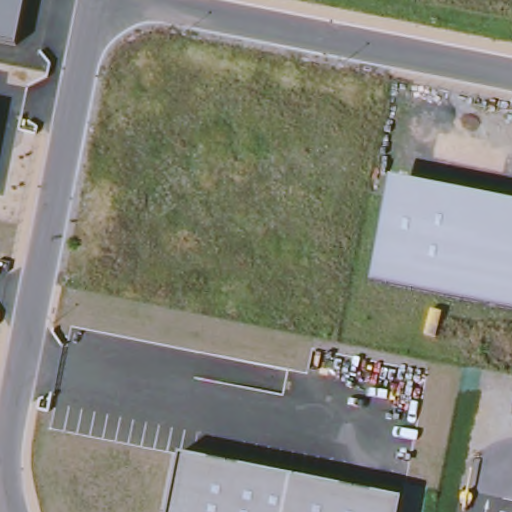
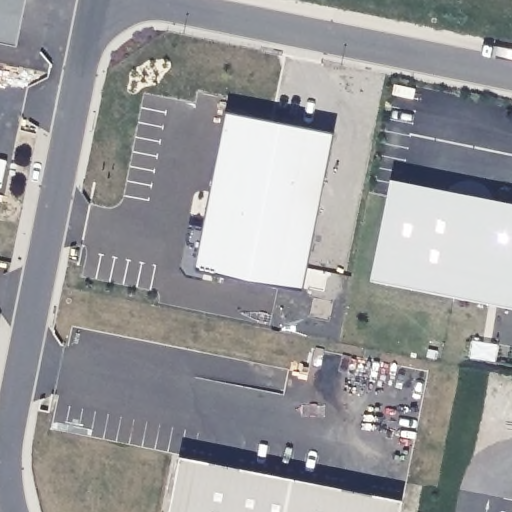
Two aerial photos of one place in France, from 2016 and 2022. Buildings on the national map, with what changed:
unchanged [(0,40),(0,0),(23,0),(15,44),(0,40)]
new [(227,110),(335,131),(303,291),(195,270),(227,110)]
unchanged [(391,175),(512,200),(512,307),(370,277),(391,175)]
unchanged [(402,499),(399,512),(168,512),(179,455),(402,499)]

